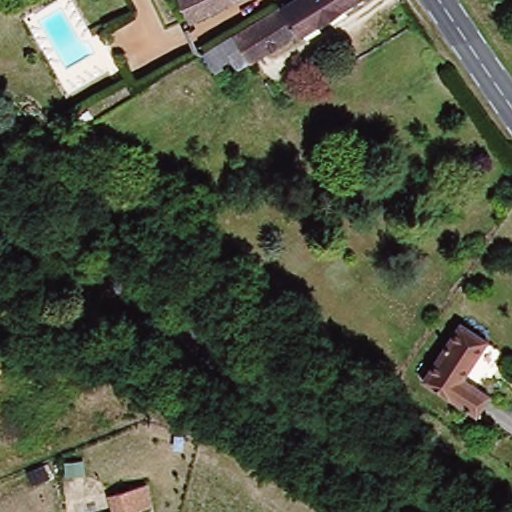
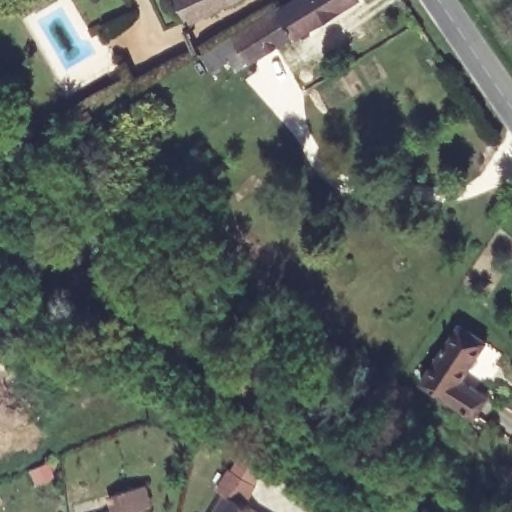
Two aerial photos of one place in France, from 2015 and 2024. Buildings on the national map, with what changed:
unchanged [(182,7),(179,0),(243,0),(190,26),(182,7)]
unchanged [(359,2),(255,65),(238,38),(301,0),(357,0),(359,2)]
unchanged [(216,77),(204,58),(223,47),(235,66),(216,77)]
unchanged [(463,330),(489,349),(465,382),(493,403),(481,418),(476,426),(422,385),(428,378),(463,330)]
new [(215,486),(228,465),(229,466),(237,452),(261,468),(253,481),(254,482),(242,502),(257,512),(209,512),(222,491),(215,486)]
unchanged [(104,493),(148,482),(154,505),(141,512),(102,512),(107,510),(104,493)]

